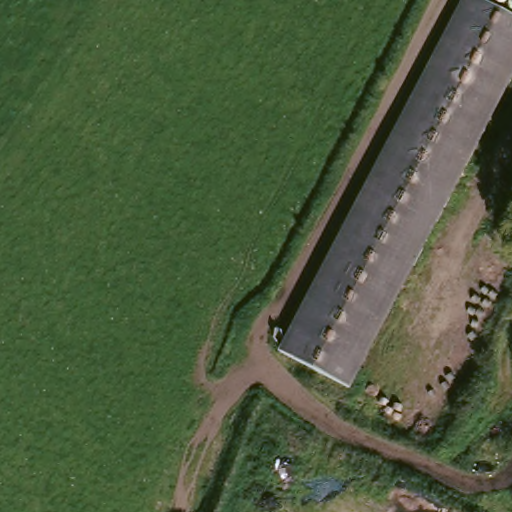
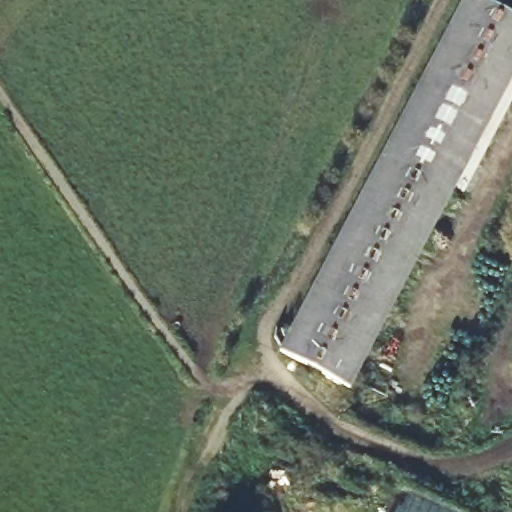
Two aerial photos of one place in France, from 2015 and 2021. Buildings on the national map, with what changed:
unchanged [(267,369),(337,234),(459,0),(489,0),(488,2),(512,16),(512,65),(411,255),(332,405),(267,369)]
unchanged [(508,363),(512,356),(512,365),(508,363)]

